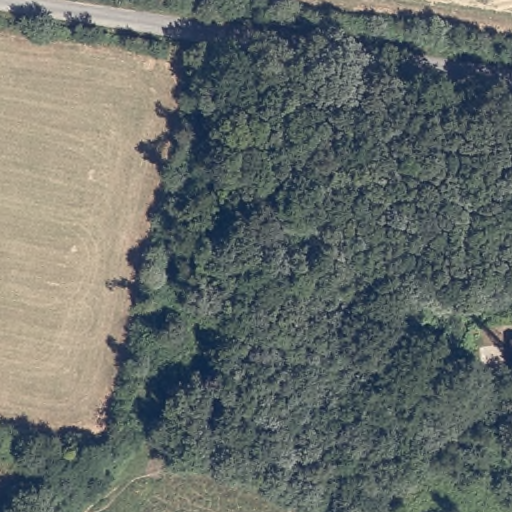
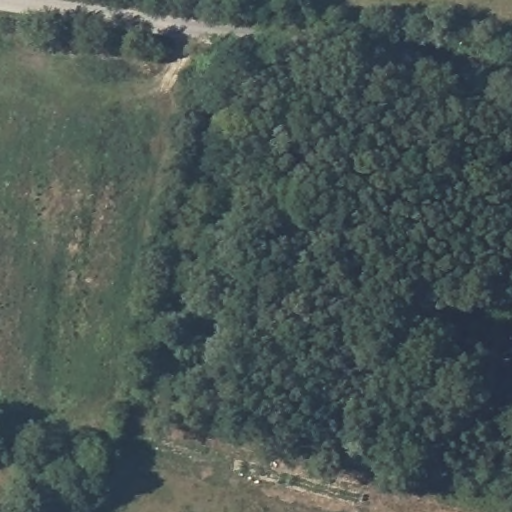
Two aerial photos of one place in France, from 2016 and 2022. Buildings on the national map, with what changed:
unchanged [(512,326),(512,329),(512,353),(502,354),(500,328),(512,326)]

